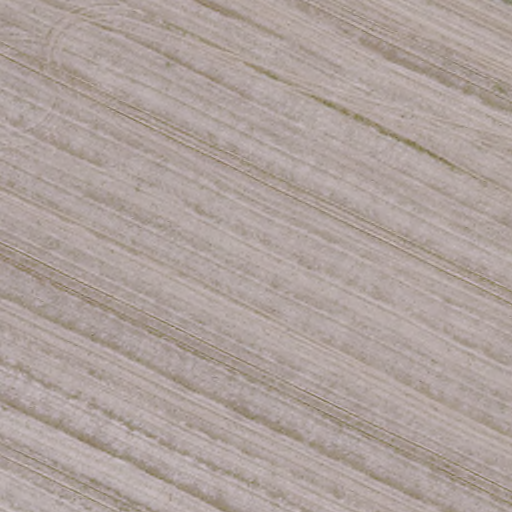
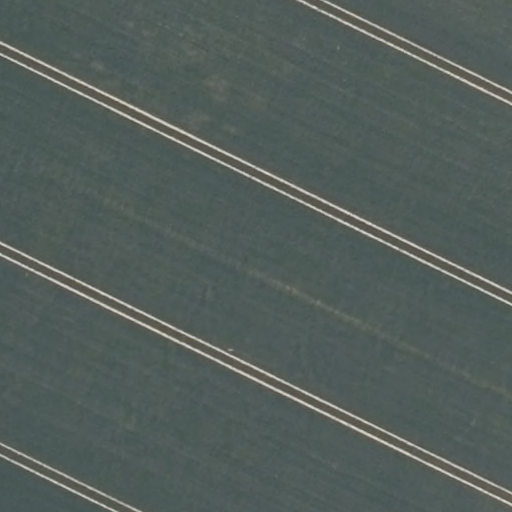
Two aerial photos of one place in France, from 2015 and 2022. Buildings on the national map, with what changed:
[]

